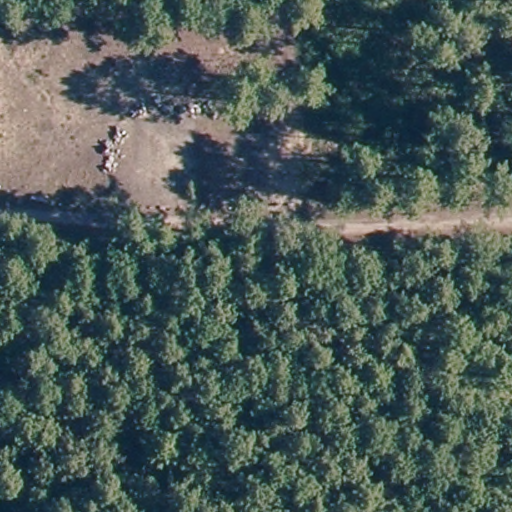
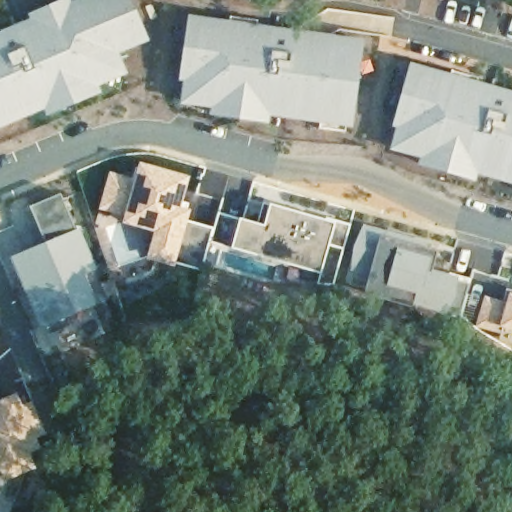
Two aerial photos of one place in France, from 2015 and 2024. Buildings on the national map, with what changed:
new [(134,45),(136,50),(110,61),(104,47),(116,76),(0,125),(0,47),(110,0),(120,0),(135,35),(139,43),(134,45)]
new [(31,25),(29,21),(44,14),(59,7),(61,12),(66,10),(69,18),(49,27),(29,35),(26,27),(31,25)]
new [(25,25),(29,35),(0,48),(0,39),(25,25)]
new [(225,25),(252,28),(250,42),(222,38),(225,25)]
new [(252,31),(292,41),(291,47),(250,42),(252,31)]
new [(189,72),(184,72),(177,72),(179,59),(184,60),(185,55),(179,54),(182,32),(195,34),(189,72)]
new [(180,103),(184,72),(189,72),(195,34),(345,55),(342,77),(336,125),(180,103)]
new [(327,45),(353,48),(352,56),(358,57),(356,79),(342,77),(345,55),(326,52),(327,45)]
new [(447,77),(475,84),(471,97),(443,90),(447,77)]
new [(405,119),(400,117),(400,119),(393,117),(397,105),(402,106),(403,101),(397,100),(403,79),(416,82),(405,119)]
new [(400,117),(405,119),(416,82),(512,109),(512,183),(391,150),(400,117)]
new [(473,86),(512,102),(511,108),(471,97),(473,86)]
new [(45,115),(40,117),(37,110),(64,98),(91,87),(94,94),(89,96),(91,101),(69,111),(47,120),(45,115)]
new [(338,103),(352,105),(349,127),(342,126),(341,134),(315,130),(316,122),(336,125),(338,103)]
new [(260,122),(259,127),(235,125),(211,121),(212,116),(207,115),(208,107),(237,111),(266,115),(265,123),(260,122)]
new [(472,181),(467,180),(466,185),(442,178),(420,172),(421,167),(416,165),(418,157),(446,165),(474,173),(472,181)]
new [(191,177),(181,209),(191,212),(175,267),(147,260),(154,234),(122,224),(124,217),(99,210),(110,172),(135,179),(139,162),(191,177)]
new [(61,192),(79,228),(42,242),(27,207),(61,192)]
new [(262,216),(265,206),(351,230),(335,287),(282,285),(206,265),(225,202),(262,216)]
new [(202,271),(177,263),(189,221),(217,230),(206,265),(202,271)]
new [(435,245),(433,252),(438,254),(435,272),(459,279),(447,317),(365,296),(371,276),(351,271),(363,226),(435,245)]
new [(42,242),(79,228),(97,272),(88,277),(99,306),(40,330),(9,257),(42,242)]
new [(512,295),(512,331),(503,328),(512,295)]
new [(1,464),(0,464),(0,406),(16,398),(37,449),(27,453),(32,467),(7,477),(1,464)]
new [(7,477),(27,469),(9,512),(0,512),(0,464),(1,464),(7,477)]

